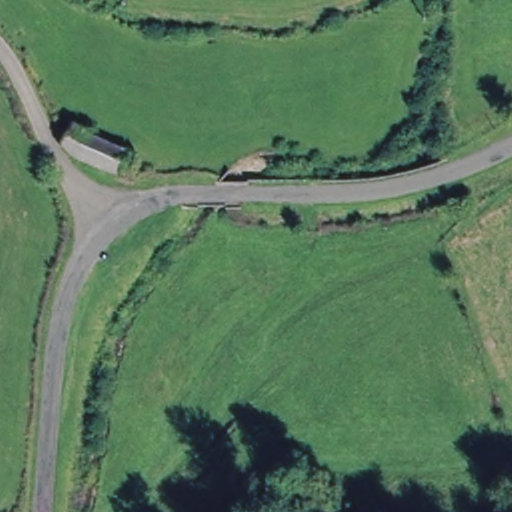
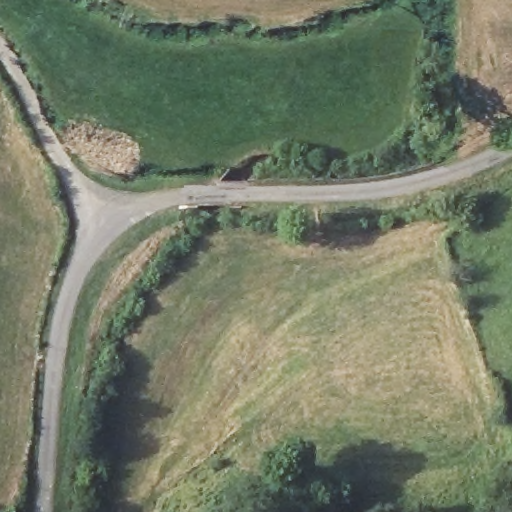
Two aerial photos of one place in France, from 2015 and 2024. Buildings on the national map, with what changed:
unchanged [(67,148),(74,135),(78,126),(132,155),(126,177),(67,148)]

